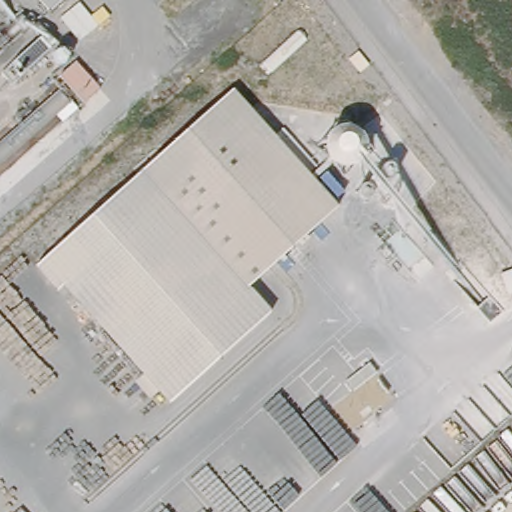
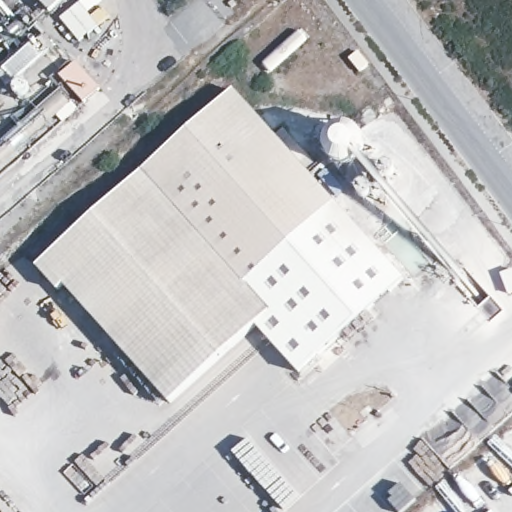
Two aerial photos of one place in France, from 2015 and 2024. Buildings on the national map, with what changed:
unchanged [(367,69),(361,74),(350,59),(356,55),(367,69)]
unchanged [(115,56),(125,67),(109,81),(99,70),(115,56)]
unchanged [(274,135),(282,130),(314,166),(308,175),(336,207),(246,288),(268,314),(169,402),(65,286),(58,292),(36,266),(233,91),(274,135)]
new [(405,280),(300,373),(256,325),(268,314),(246,288),(336,207),(405,280)]

